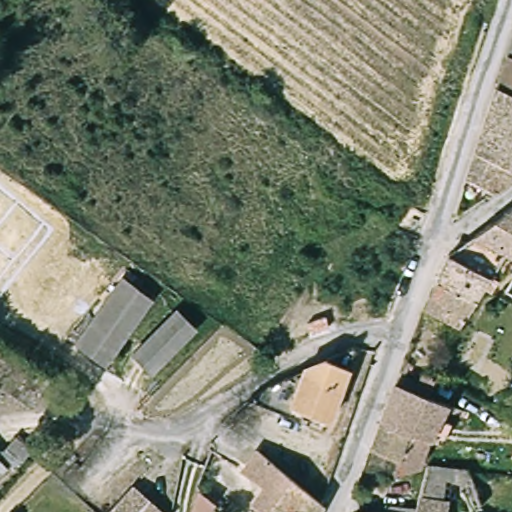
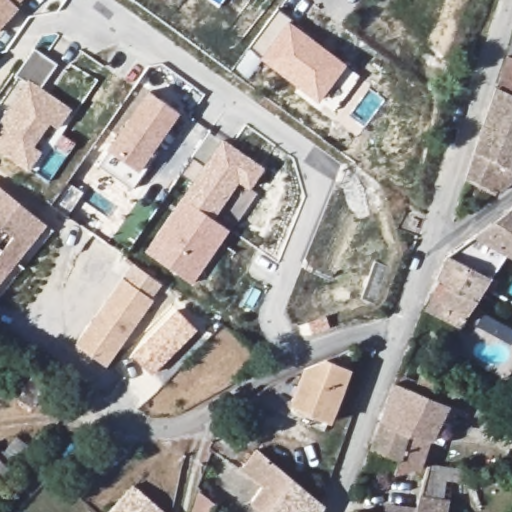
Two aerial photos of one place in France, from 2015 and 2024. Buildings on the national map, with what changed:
new [(18,8),(0,27),(0,0),(21,0),(16,6),(18,8)]
new [(292,19),(289,21),(347,64),(318,102),(260,58),(261,56),(249,48),(278,9),(292,19)]
unchanged [(469,179),(508,58),(512,45),(512,189),(504,195),(469,179)]
new [(15,76),(34,49),(57,64),(40,88),(72,110),(59,129),(50,123),(33,146),(41,153),(27,172),(0,152),(0,120),(26,84),(15,76)]
new [(148,91),(179,113),(153,150),(157,153),(130,190),(98,167),(107,150),(148,91)]
new [(181,176),(193,159),(204,166),(223,140),(265,169),(249,191),(238,184),(214,220),(230,231),(192,285),(145,252),(192,184),(181,176)]
unchanged [(50,224),(0,289),(0,190),(50,224)]
unchanged [(483,233),(512,213),(512,253),(507,250),(483,233)]
unchanged [(500,262),(491,279),(482,296),(440,275),(451,255),(483,233),(507,250),(500,262)]
unchanged [(440,275),(482,296),(467,324),(426,303),(440,275)]
unchanged [(78,350),(125,281),(157,299),(111,368),(78,350)]
unchanged [(201,330),(161,381),(137,363),(179,314),(201,330)]
unchanged [(325,365),(343,361),(360,359),(327,424),(295,408),(314,369),(325,365)]
unchanged [(289,418),(255,401),(272,390),(292,379),(314,369),(295,408),(289,418)]
unchanged [(436,464),(434,468),(396,480),(399,466),(376,454),(373,453),(396,391),(402,377),(419,384),(412,399),(415,401),(425,380),(439,387),(431,402),(440,406),(437,411),(449,417),(453,428),(436,464)]
unchanged [(80,396),(59,420),(46,409),(67,385),(80,396)]
unchanged [(324,508),(321,512),(239,512),(238,512),(250,490),(243,486),(260,454),(324,508)]
unchanged [(12,472),(0,483),(0,460),(12,472)]
unchanged [(427,484),(434,468),(436,464),(470,481),(480,511),(455,498),(427,484)]
unchanged [(133,483),(171,512),(107,512),(133,483)]
unchanged [(427,484),(455,498),(450,512),(412,512),(427,484)]
unchanged [(206,500),(216,508),(214,512),(200,512),(206,500)]

